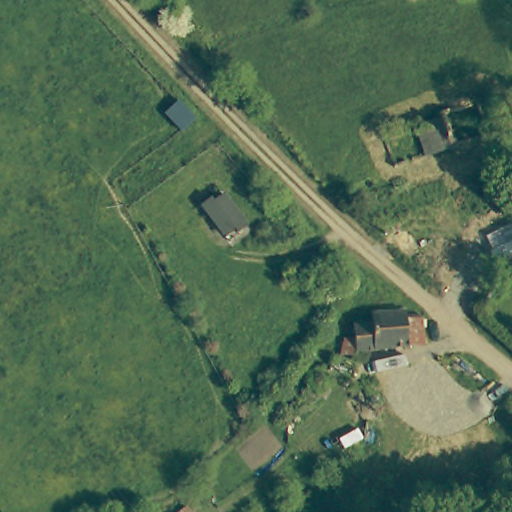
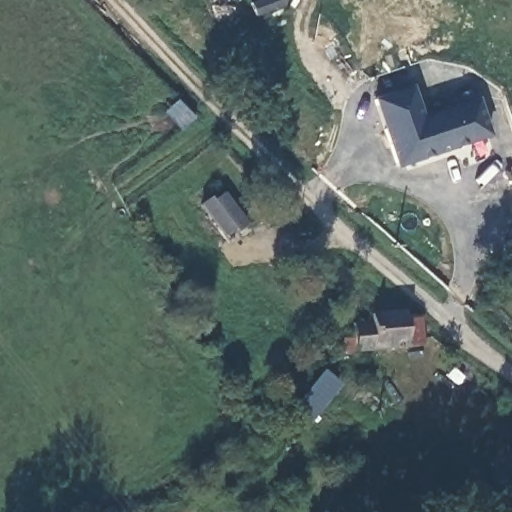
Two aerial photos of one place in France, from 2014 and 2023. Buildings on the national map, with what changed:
new [(413,85),(424,114),(479,96),(494,135),(398,167),(373,98),(413,85)]
demolished [(443,117),(441,112),(477,100),(488,136),(454,147),(443,117)]
unchanged [(355,357),(337,360),(345,343),(351,342),(351,333),(376,328),(375,321),(409,315),(413,314),(415,321),(420,341),(357,353),(355,357)]

